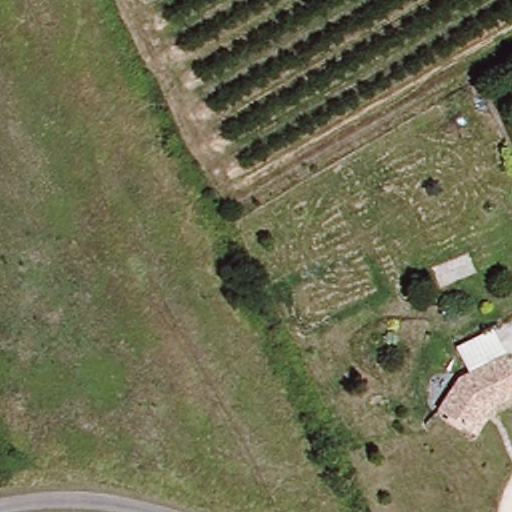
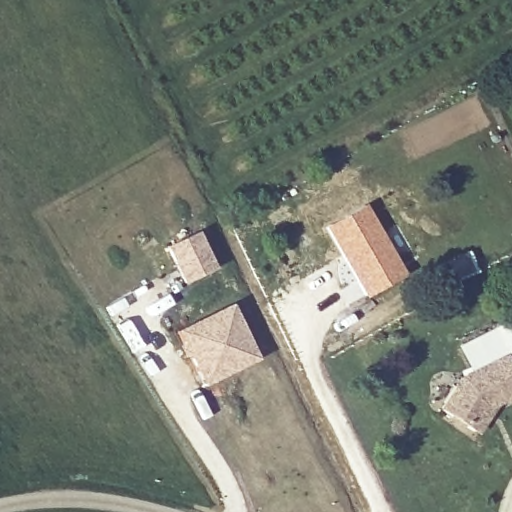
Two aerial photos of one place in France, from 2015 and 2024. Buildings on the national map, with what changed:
new [(363,203),(405,275),(365,298),(323,227),(363,203)]
new [(198,230),(217,267),(186,284),(166,249),(198,230)]
new [(469,250),(478,272),(441,289),(430,268),(469,250)]
new [(232,302),(260,358),(203,385),(175,331),(232,302)]
unchanged [(457,347),(494,329),(506,355),(470,371),(457,347)]
unchanged [(470,371),(506,355),(512,368),(512,400),(496,407),(478,435),(440,410),(458,377),(470,371)]

